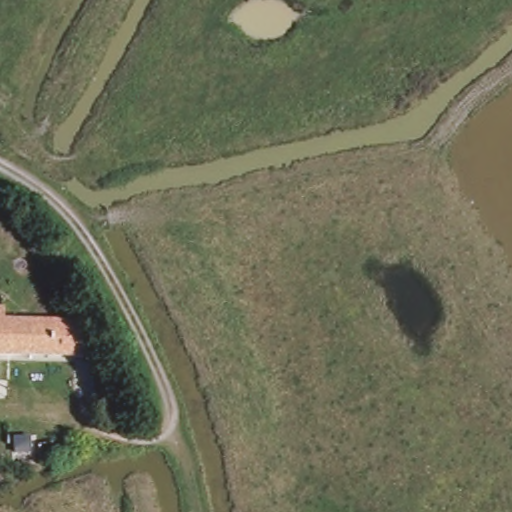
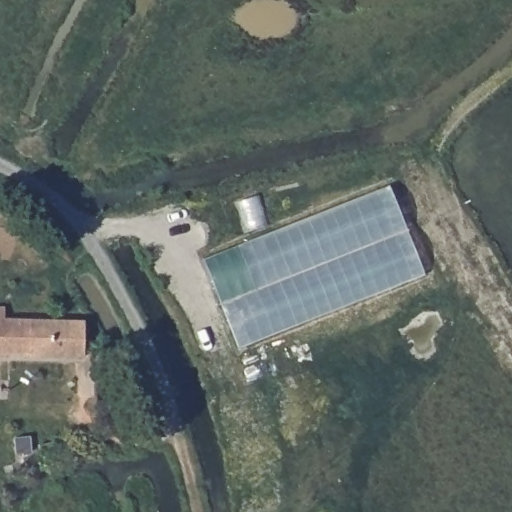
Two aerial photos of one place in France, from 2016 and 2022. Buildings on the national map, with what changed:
new [(424,273),(238,347),(202,258),(388,185),(424,273)]
unchanged [(10,316),(10,356),(0,355),(0,315),(10,316)]
unchanged [(92,321),(91,358),(10,356),(10,316),(92,321)]
unchanged [(53,442),(53,453),(33,452),(33,441),(53,442)]

